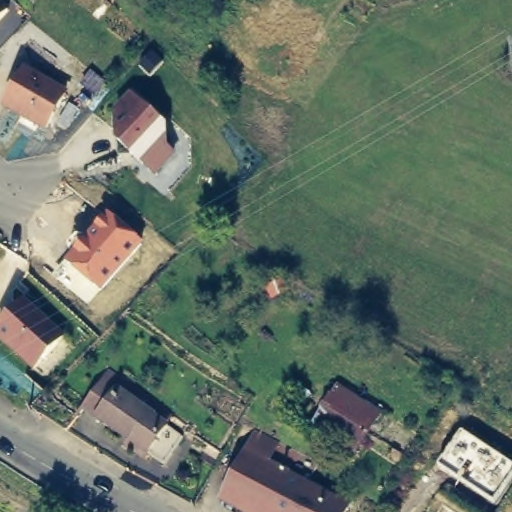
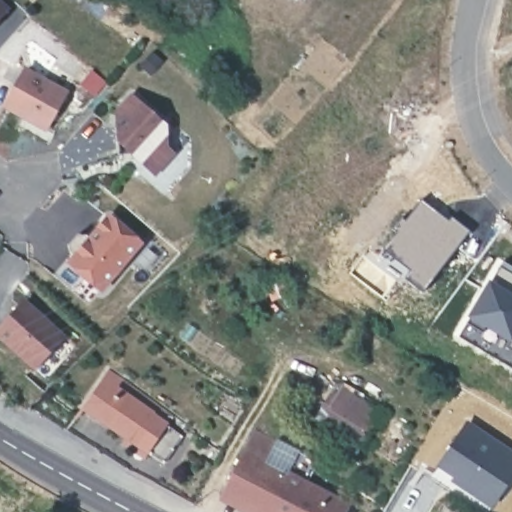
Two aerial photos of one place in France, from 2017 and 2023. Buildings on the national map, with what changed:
unchanged [(0,12),(0,0),(6,5),(0,12)]
unchanged [(22,65),(67,89),(46,130),(1,107),(22,65)]
unchanged [(131,90),(166,124),(167,145),(175,152),(155,176),(115,139),(114,107),(131,90)]
new [(396,238),(392,235),(401,223),(405,226),(420,204),(438,217),(433,224),(443,232),(451,221),(470,235),(425,298),(406,284),(414,273),(386,253),(396,238)]
unchanged [(143,243),(100,293),(66,263),(72,253),(67,244),(75,236),(84,237),(106,211),(143,243)]
new [(505,263),(512,268),(512,352),(467,326),(502,267),(505,263)]
unchanged [(62,335),(34,366),(0,336),(0,325),(22,299),(62,335)]
new [(467,326),(512,352),(512,370),(460,339),(467,326)]
unchanged [(123,444),(116,439),(121,433),(76,402),(103,365),(122,379),(117,387),(162,421),(161,423),(174,432),(156,458),(139,447),(135,452),(123,444)]
unchanged [(386,404),(372,434),(411,457),(395,479),(305,424),(337,373),(386,404)]
unchanged [(251,428),(292,449),(282,471),(241,450),(251,428)]
new [(472,433),(512,460),(512,496),(505,507),(448,468),(472,433)]
unchanged [(292,449),(316,460),(303,487),(343,508),(341,512),(262,512),(221,491),(241,450),(282,471),(292,449)]

